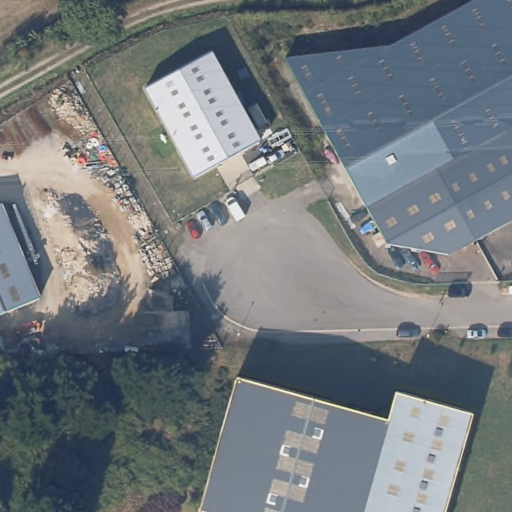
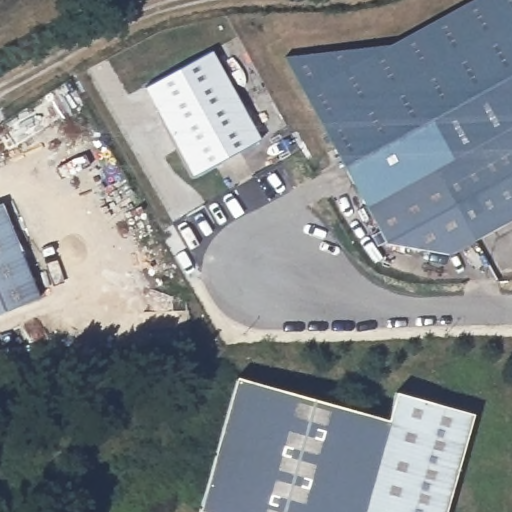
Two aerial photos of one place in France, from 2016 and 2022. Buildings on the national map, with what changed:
unchanged [(471,0),(512,0),(512,219),(454,250),(384,241),(284,55),(388,45),(471,0)]
unchanged [(205,49),(264,131),(202,176),(143,94),(205,49)]
unchanged [(0,312),(0,203),(5,201),(41,296),(0,312)]
unchanged [(236,374),(387,413),(395,385),(470,405),(443,512),(200,512),(219,440),(236,374)]

